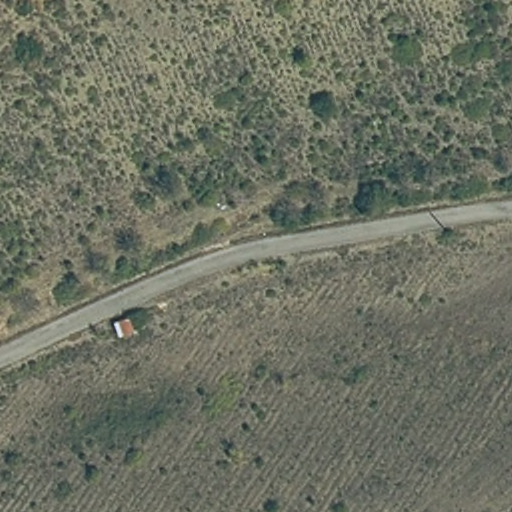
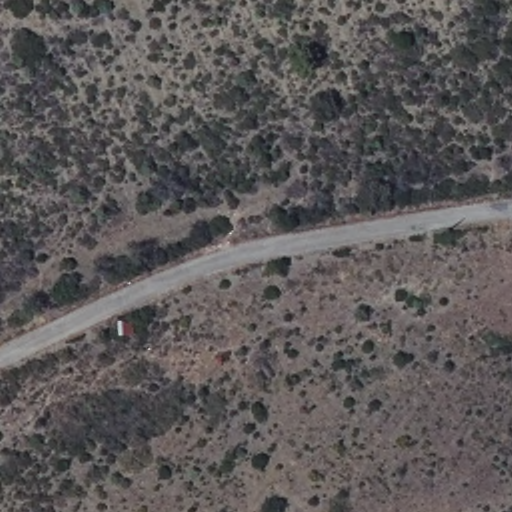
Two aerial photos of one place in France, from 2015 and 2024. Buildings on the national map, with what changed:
unchanged [(126,314),(132,331),(113,339),(106,321),(126,314)]

